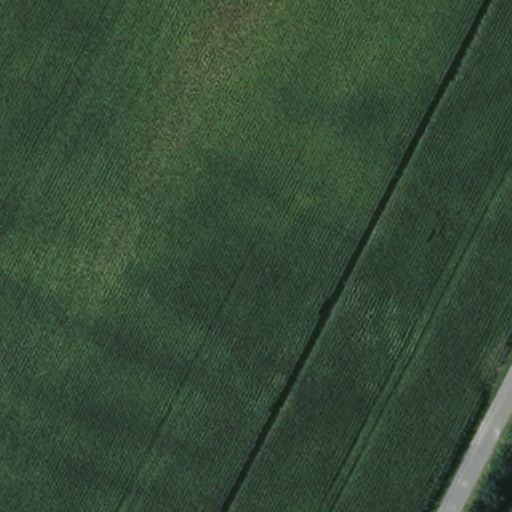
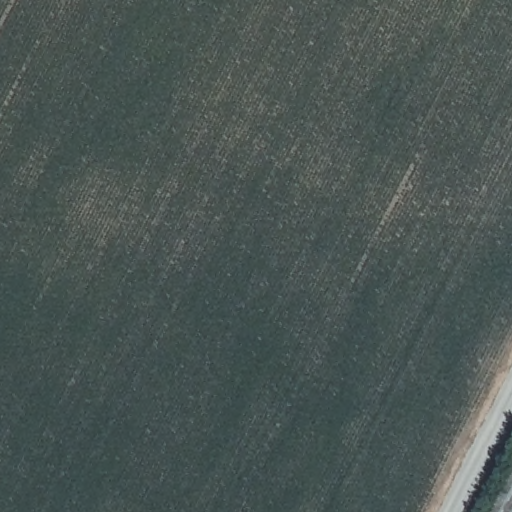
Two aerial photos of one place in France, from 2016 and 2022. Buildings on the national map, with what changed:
[]

